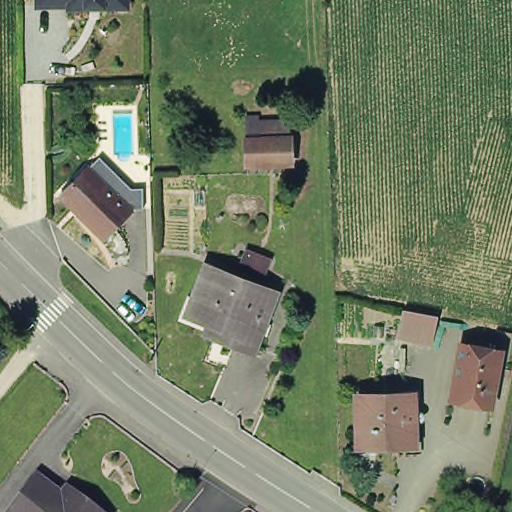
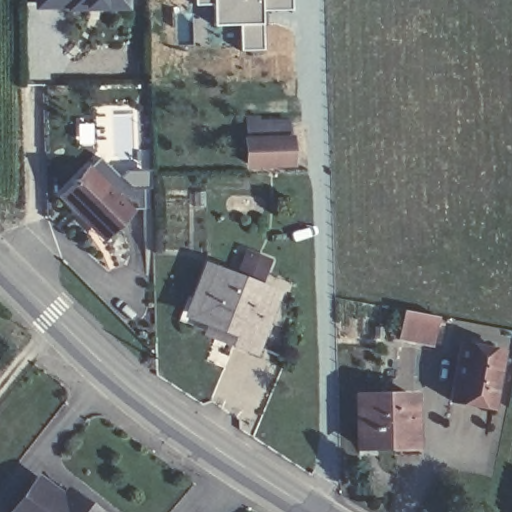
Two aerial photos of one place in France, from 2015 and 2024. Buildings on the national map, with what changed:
unchanged [(116,16),(64,15),(64,10),(34,10),(34,0),(116,0),(116,16)]
new [(292,11),(263,12),(266,50),(240,51),(237,25),(213,26),(212,5),(193,6),(193,0),(292,0),(292,11)]
new [(191,12),(192,42),(176,42),(174,12),(191,12)]
unchanged [(290,128),(291,167),(281,167),(250,167),(248,129),(280,127),(290,128)]
unchanged [(61,197),(90,170),(132,215),(106,240),(103,243),(77,215),(61,197)]
unchanged [(188,306),(205,263),(273,291),(251,345),(205,327),(210,315),(188,306)]
unchanged [(436,317),(430,342),(396,335),(402,310),(436,317)]
unchanged [(503,347),(492,409),(448,401),(457,340),(503,347)]
unchanged [(363,441),(362,391),(417,390),(418,440),(363,441)]
unchanged [(12,512),(7,508),(37,469),(60,487),(65,478),(85,495),(106,512),(12,512)]

